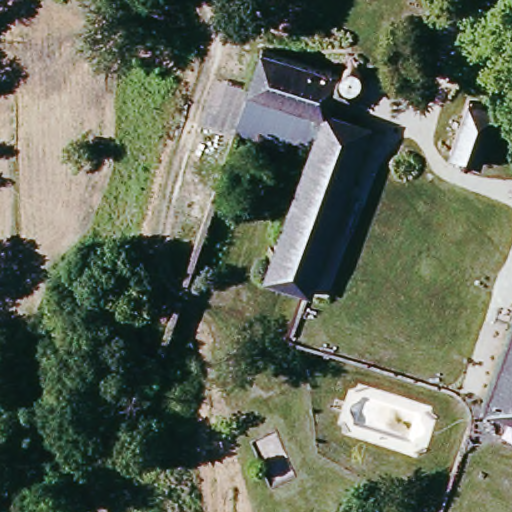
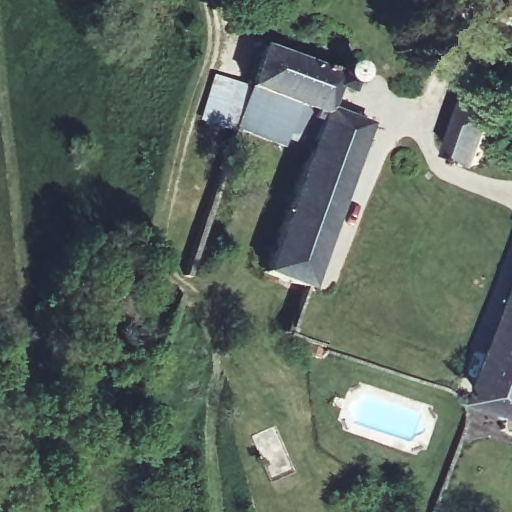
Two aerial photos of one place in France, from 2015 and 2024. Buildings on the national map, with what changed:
unchanged [(245,84),(260,41),(338,71),(338,62),(347,58),(355,61),(360,68),(358,74),(350,77),(346,90),(332,84),(324,105),(366,121),(308,284),(266,269),(298,184),(295,182),(300,167),(303,169),(307,156),(280,144),(282,138),(241,122),(234,119),(245,84)]
unchanged [(245,84),(234,119),(241,122),(234,138),(200,125),(218,74),(245,84)]
unchanged [(464,100),(495,111),(477,165),(446,153),(464,100)]
unchanged [(482,398),(512,316),(512,409),(482,398)]

